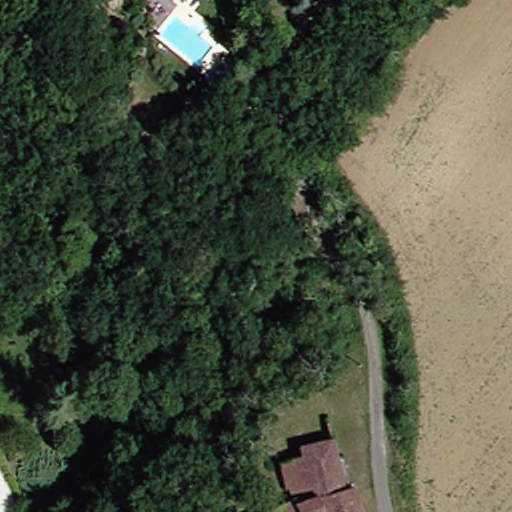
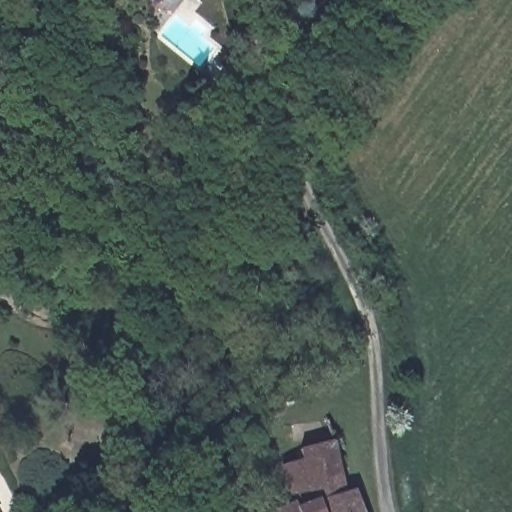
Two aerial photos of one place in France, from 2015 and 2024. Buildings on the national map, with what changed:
unchanged [(173,0),(179,0),(176,3),(173,0)]
unchanged [(334,434),(349,466),(366,512),(271,512),(296,499),(280,464),(305,453),(300,444),(334,434)]

